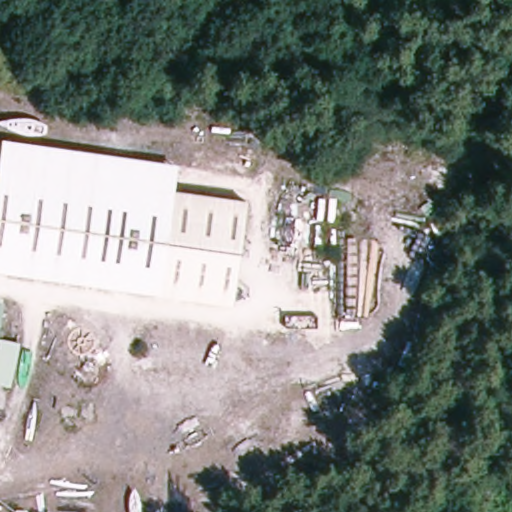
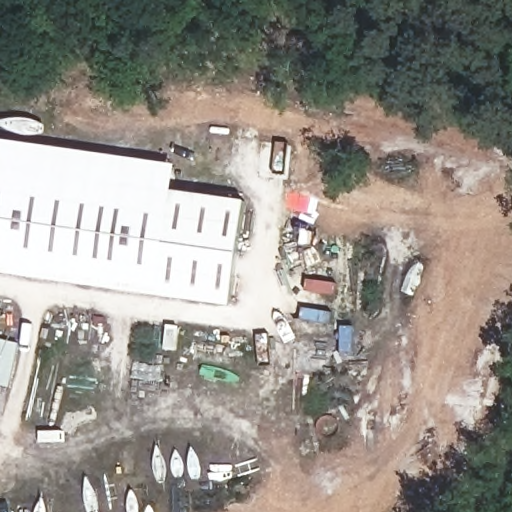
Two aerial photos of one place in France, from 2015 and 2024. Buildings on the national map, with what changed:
unchanged [(170,192),(156,289),(0,269),(0,143),(173,165),(170,192)]
unchanged [(156,289),(170,192),(247,203),(233,304),(156,295),(156,289)]
unchanged [(0,299),(5,300),(0,317),(0,299)]
unchanged [(10,389),(0,387),(0,338),(23,343),(10,389)]

